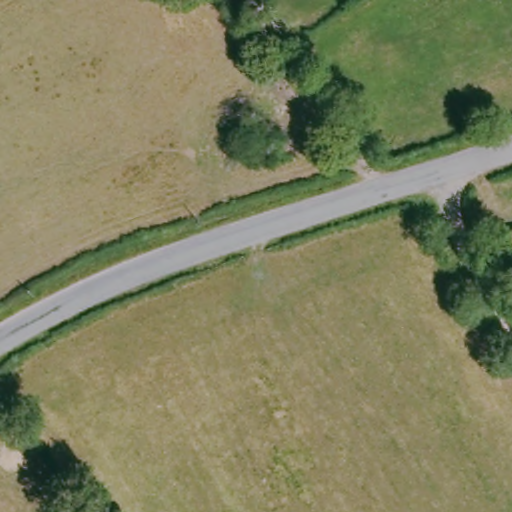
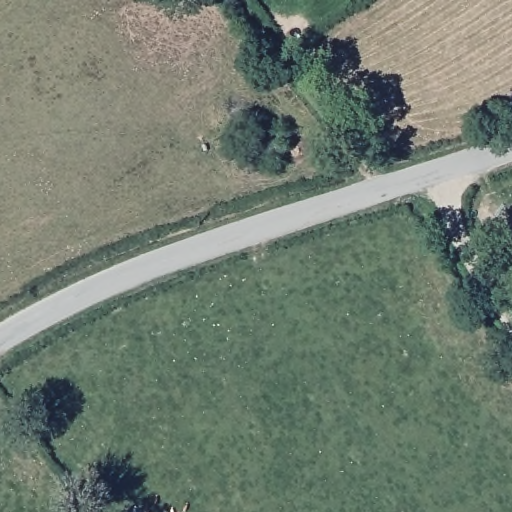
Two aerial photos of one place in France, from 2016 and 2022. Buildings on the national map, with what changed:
unchanged [(512,230),(512,267),(495,242),(512,230)]

